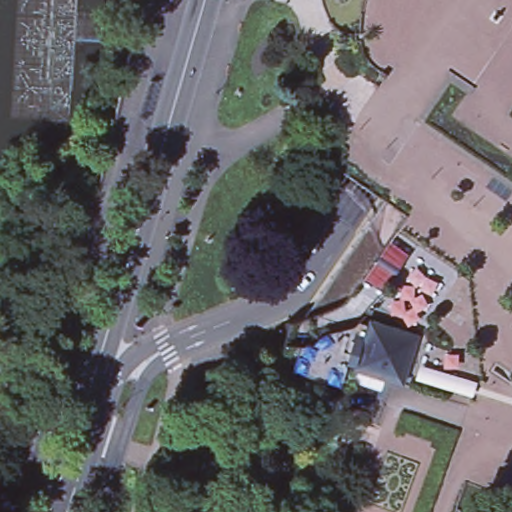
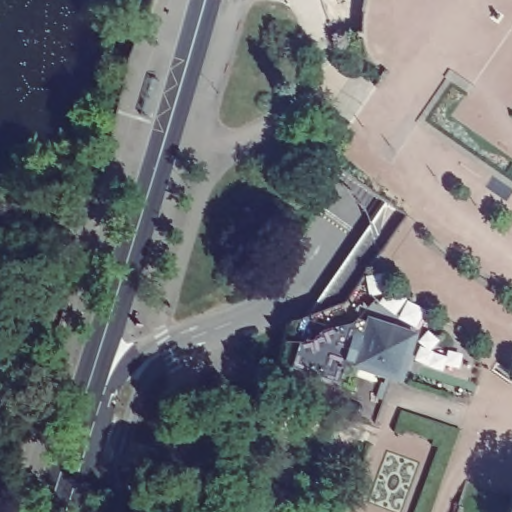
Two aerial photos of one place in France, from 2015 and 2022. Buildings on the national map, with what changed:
unchanged [(416,337),(402,383),(356,369),(371,323),(416,337)]

